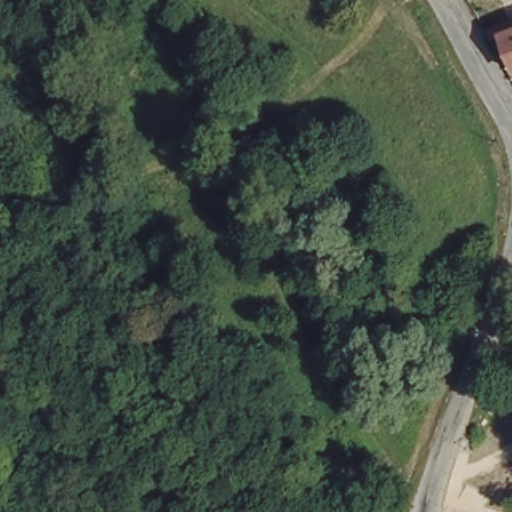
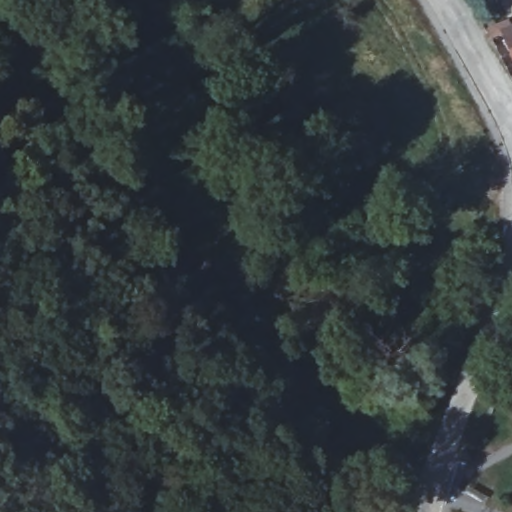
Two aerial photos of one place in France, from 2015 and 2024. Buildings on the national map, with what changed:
unchanged [(512,22),(512,44),(504,25),(512,22)]

